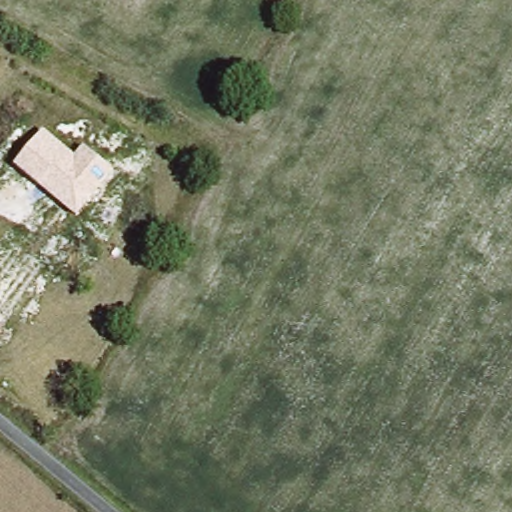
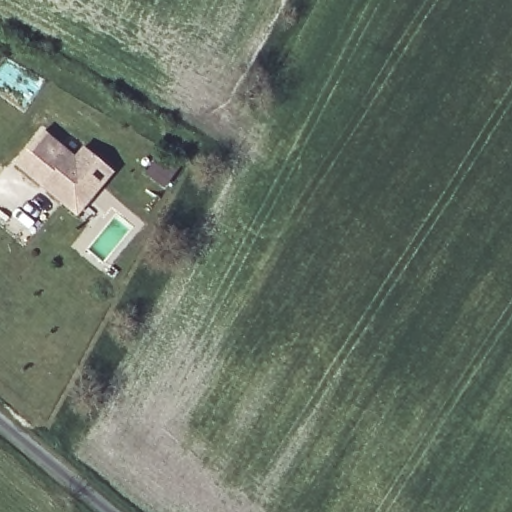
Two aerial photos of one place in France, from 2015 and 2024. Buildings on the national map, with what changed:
unchanged [(75,157),(83,146),(116,172),(76,218),(15,166),(43,132),(75,157)]

